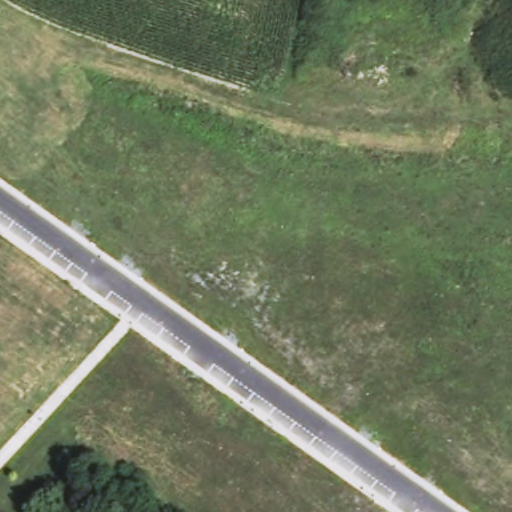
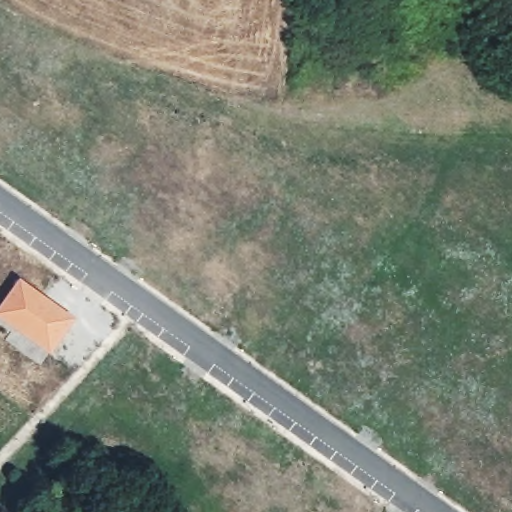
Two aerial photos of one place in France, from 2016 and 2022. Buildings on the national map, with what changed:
new [(51,351),(0,315),(0,309),(21,280),(74,319),(51,351)]

